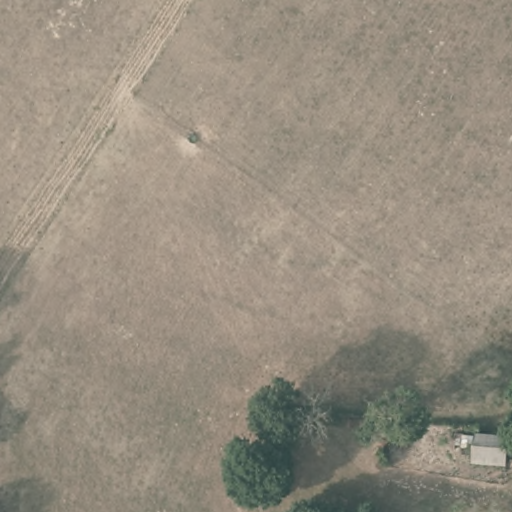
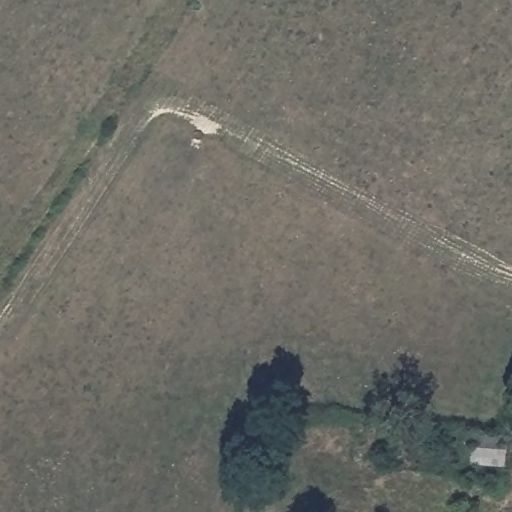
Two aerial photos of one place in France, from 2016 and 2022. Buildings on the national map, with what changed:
unchanged [(512,439),(511,458),(477,455),(479,435),(512,439)]

